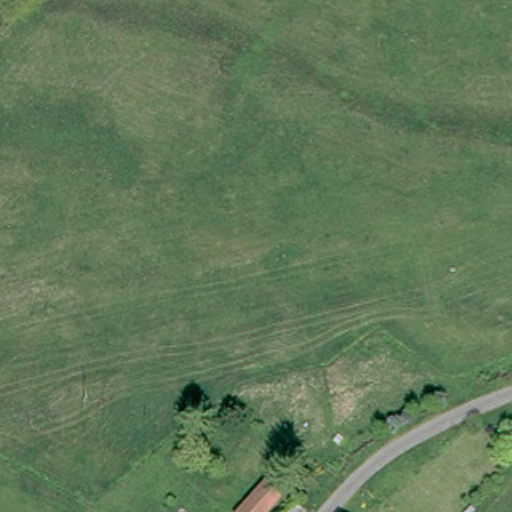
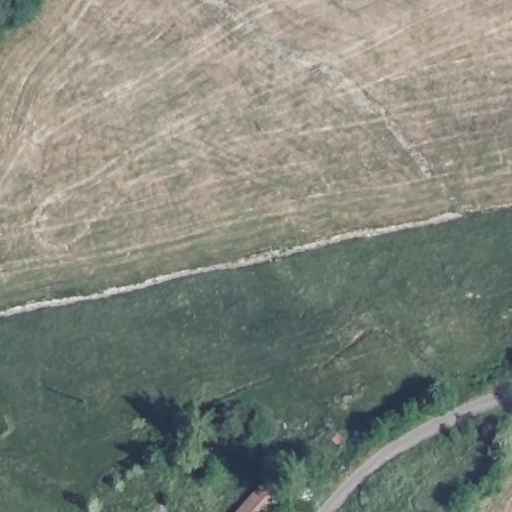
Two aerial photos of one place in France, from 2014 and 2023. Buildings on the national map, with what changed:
unchanged [(273,476),(288,488),(267,512),(240,512),(273,476)]

